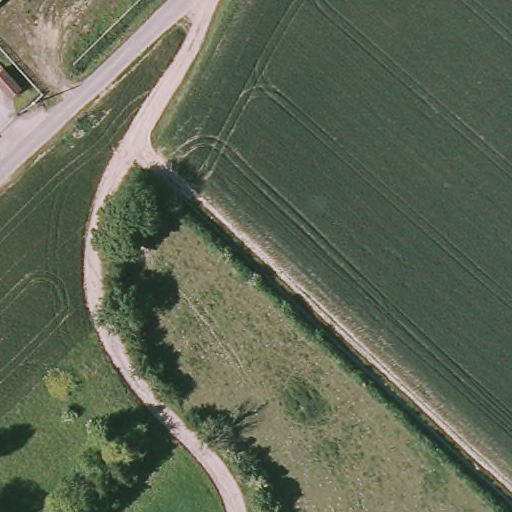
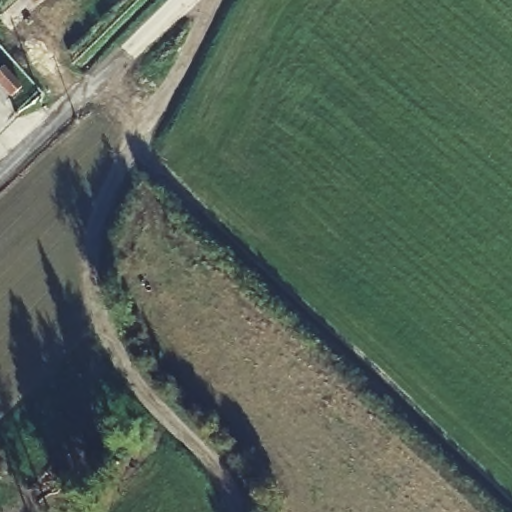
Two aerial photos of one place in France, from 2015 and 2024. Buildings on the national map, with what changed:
unchanged [(17,92),(5,105),(0,99),(0,74),(17,92)]

